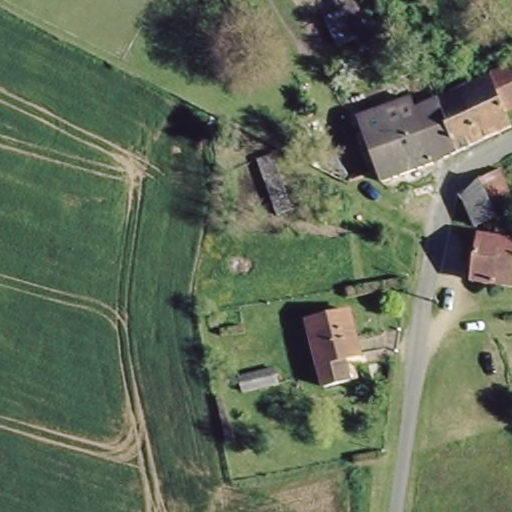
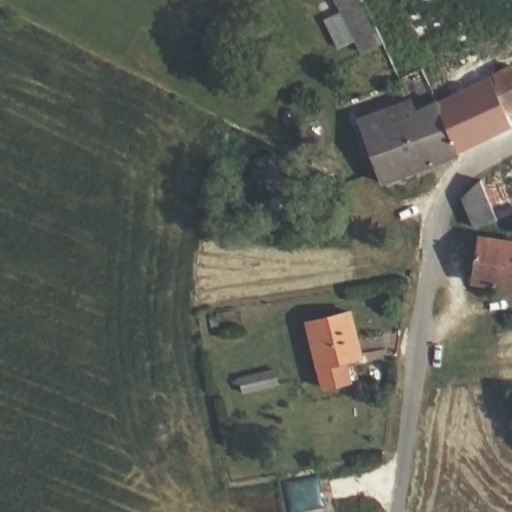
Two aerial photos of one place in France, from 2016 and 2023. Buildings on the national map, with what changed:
unchanged [(346,8),(342,0),(365,0),(383,40),(363,51),(357,40),(340,47),(326,16),(346,8)]
unchanged [(394,83),(383,88),(370,60),(382,55),(394,83)]
unchanged [(512,65),(512,128),(462,154),(439,98),(512,65)]
unchanged [(435,162),(414,110),(439,98),(462,154),(436,164),(435,162)]
unchanged [(435,162),(436,164),(432,166),(380,186),(355,121),(410,100),(414,110),(435,162)]
unchanged [(295,212),(276,219),(255,163),(274,156),(295,212)]
unchanged [(512,192),(512,211),(500,216),(475,226),(461,190),(482,173),(500,163),(512,192)]
unchanged [(470,280),(478,231),(512,237),(512,287),(470,280)]
unchanged [(352,311),(363,360),(345,364),(349,378),(322,384),(305,322),(352,311)]
unchanged [(272,367),(275,379),(243,389),(240,377),(272,367)]

